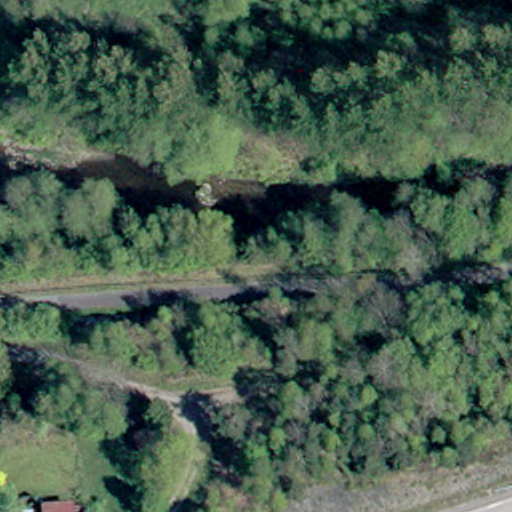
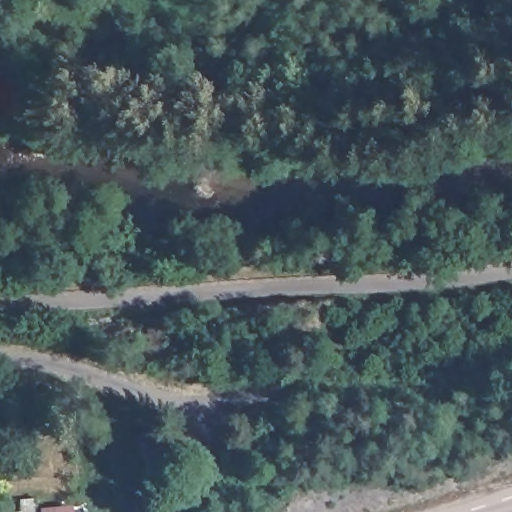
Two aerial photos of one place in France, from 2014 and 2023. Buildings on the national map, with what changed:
unchanged [(170,435),(170,458),(143,457),(143,433),(170,435)]
unchanged [(42,507),(73,504),(74,512),(43,512),(42,507)]

